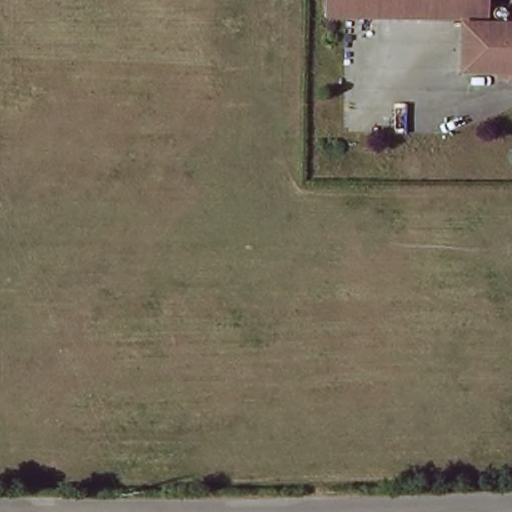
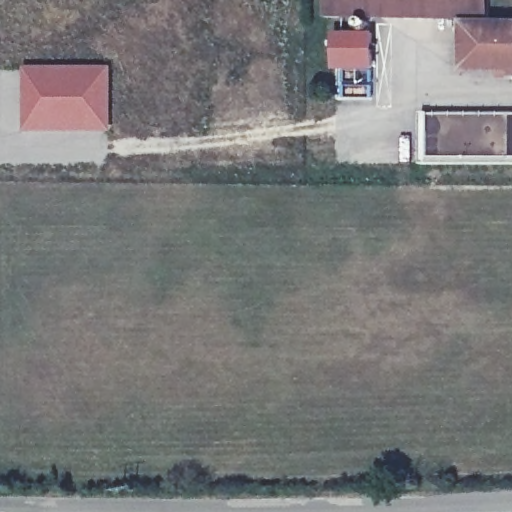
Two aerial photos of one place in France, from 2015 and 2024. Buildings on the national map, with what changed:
unchanged [(441,14),(329,9),(329,0),(493,0),(492,15),(441,14)]
unchanged [(512,21),(512,78),(506,78),(505,73),(460,71),(461,20),(512,21)]
new [(375,34),(375,70),(335,70),(336,34),(375,34)]
new [(113,66),(113,131),(25,131),(26,69),(113,66)]
new [(425,119),(436,119),(436,114),(512,113),(512,159),(425,159),(425,119)]

